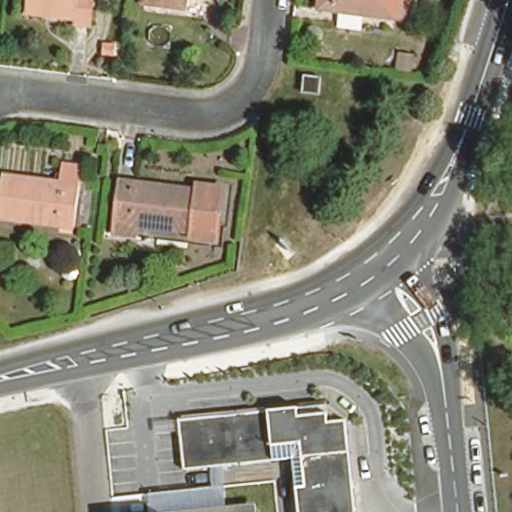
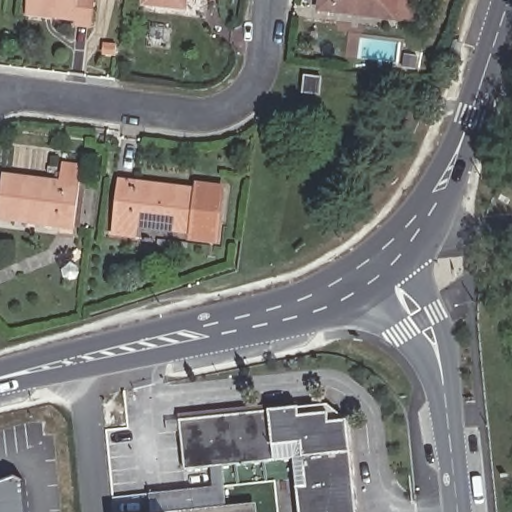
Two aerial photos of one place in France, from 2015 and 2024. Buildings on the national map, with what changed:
unchanged [(23,0),(89,0),(85,31),(70,29),(71,24),(48,21),(21,17),(22,10),(23,0)]
unchanged [(146,7),(147,0),(187,0),(186,12),(146,7)]
unchanged [(408,0),(405,21),(310,8),(311,0),(408,0)]
unchanged [(322,77),(319,95),(302,93),(304,75),(322,77)]
unchanged [(59,185),(62,170),(83,172),(74,232),(0,223),(0,208),(4,179),(59,185)]
unchanged [(191,196),(193,187),(221,191),(214,245),(186,241),(186,236),(133,229),(132,240),(108,237),(115,186),(191,196)]
unchanged [(270,412),(298,407),(328,405),(349,422),(351,453),(358,512),(302,512),(299,488),(296,459),(186,470),(181,420),(270,412)]
new [(14,477),(24,482),(28,512),(0,512),(0,482),(14,477)]

